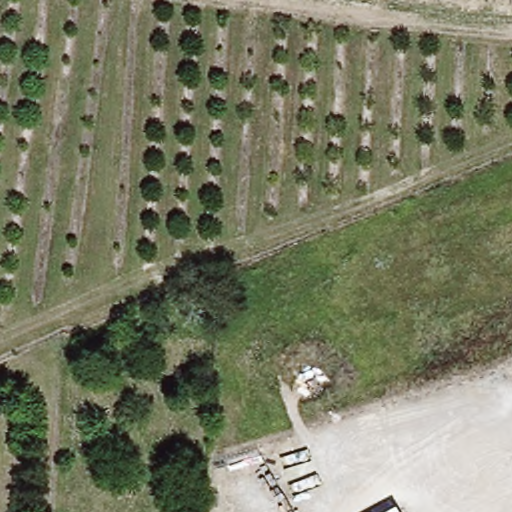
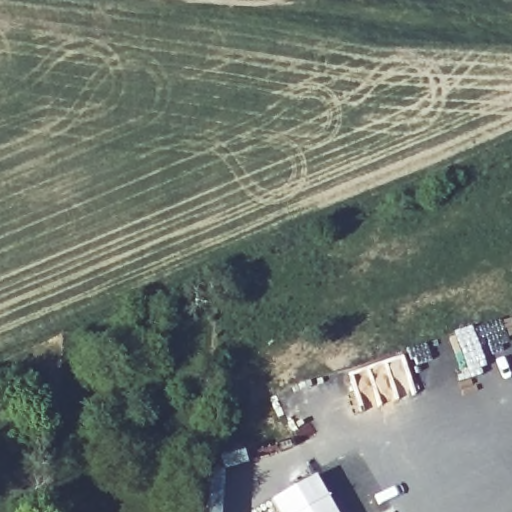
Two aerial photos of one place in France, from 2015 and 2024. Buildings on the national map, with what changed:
new [(274,512),(270,503),(315,478),(334,512),(274,512)]
demolished [(400,512),(389,512),(398,507),(400,512)]

